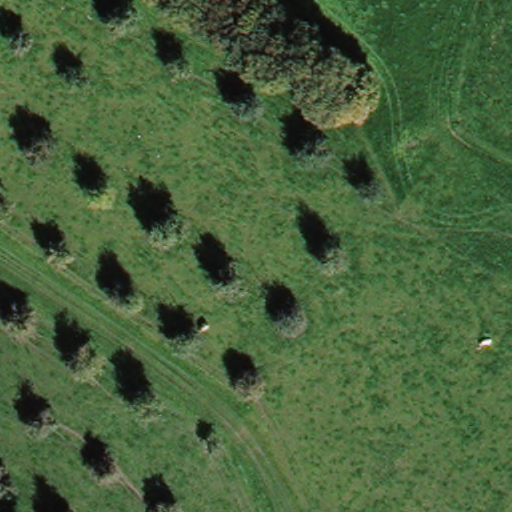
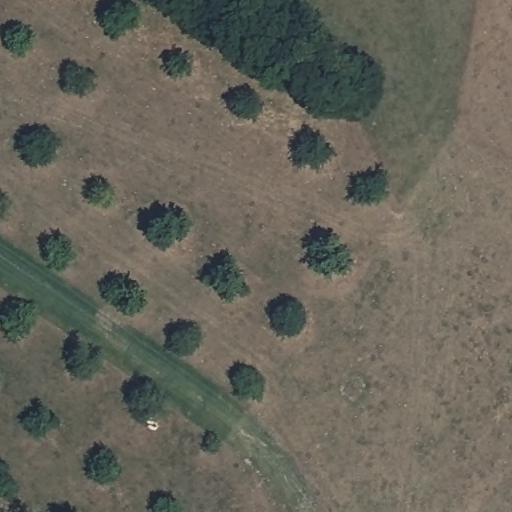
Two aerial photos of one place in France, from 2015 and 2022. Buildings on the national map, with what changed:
[]

